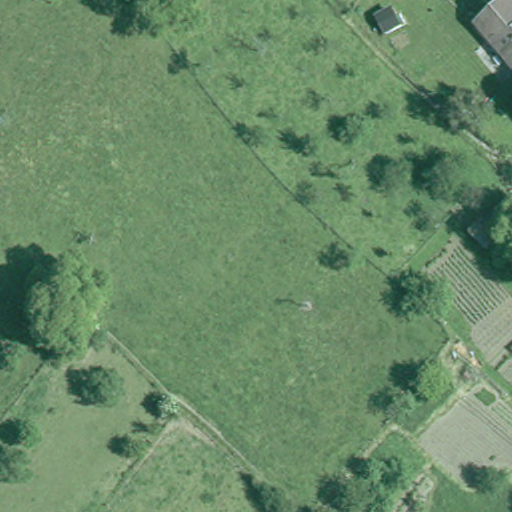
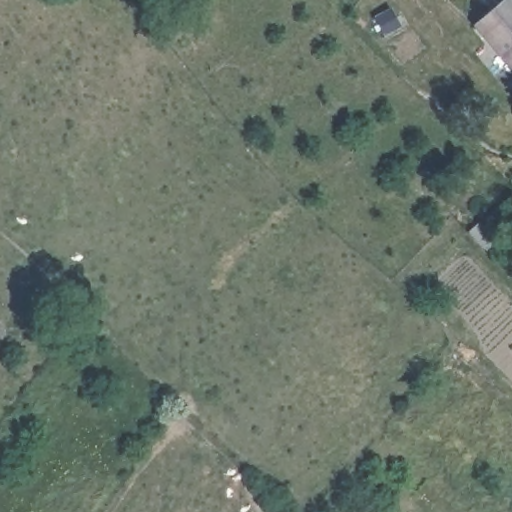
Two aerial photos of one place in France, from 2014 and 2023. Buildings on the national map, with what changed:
unchanged [(503,0),(509,0),(512,3),(512,64),(476,24),(503,0)]

